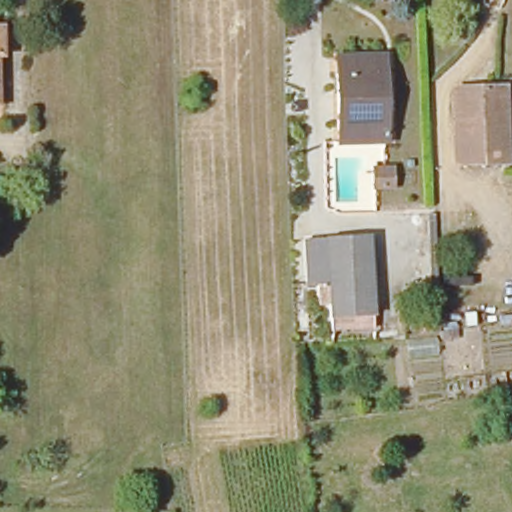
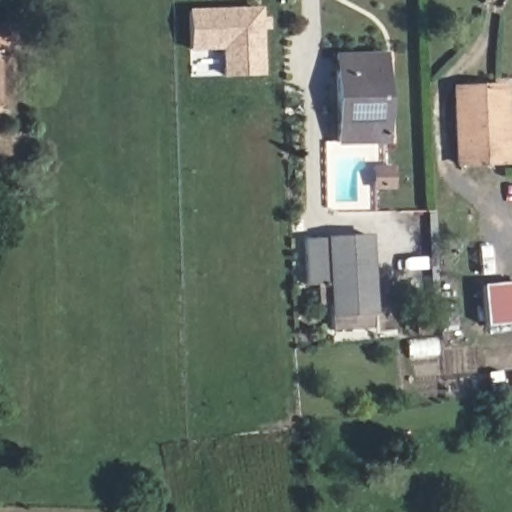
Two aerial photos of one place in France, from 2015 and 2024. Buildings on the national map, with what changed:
new [(259,10),(261,75),(223,76),(222,48),(190,50),(189,12),(259,10)]
unchanged [(337,142),(336,55),(385,54),(386,140),(337,142)]
unchanged [(450,91),(489,90),(500,89),(501,166),(496,166),(453,168),(450,91)]
unchanged [(373,184),(373,166),(390,166),(390,184),(373,184)]
unchanged [(326,332),(326,319),(323,287),(301,287),(299,241),(364,239),(368,317),(369,331),(326,332)]
new [(484,327),(480,290),(512,286),(512,324),(484,327)]

